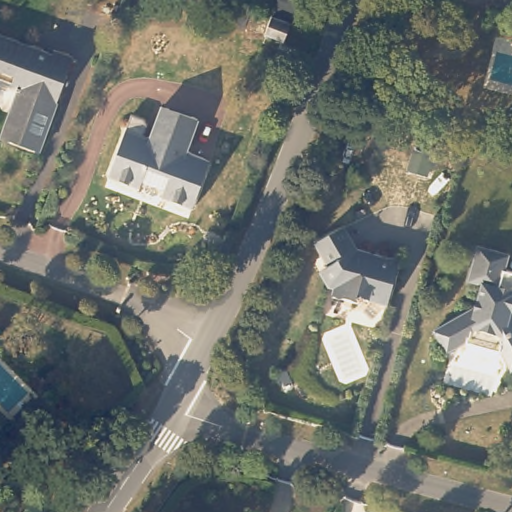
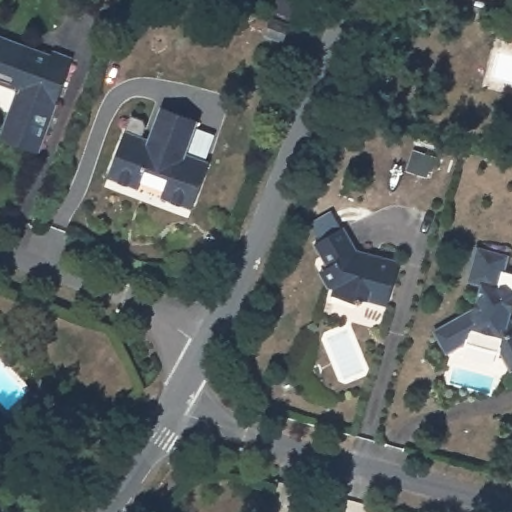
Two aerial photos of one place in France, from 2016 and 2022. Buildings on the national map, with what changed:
unchanged [(50,47),(70,54),(35,148),(0,136),(0,130),(15,88),(0,83),(0,35),(49,52),(50,47)]
unchanged [(192,124),(181,157),(208,166),(191,214),(159,201),(163,188),(141,180),(137,192),(104,181),(122,134),(127,130),(134,122),(139,122),(145,124),(145,131),(141,142),(148,144),(158,112),(192,124)]
unchanged [(318,266),(326,260),(314,235),(342,220),(358,247),(399,258),(385,302),(363,296),(356,299),(332,292),(334,285),(330,281),(325,283),(318,266)]
unchanged [(510,250),(507,265),(512,266),(512,362),(507,353),(466,342),(451,352),(439,327),(476,307),(483,277),(471,275),(480,242),(510,250)]

